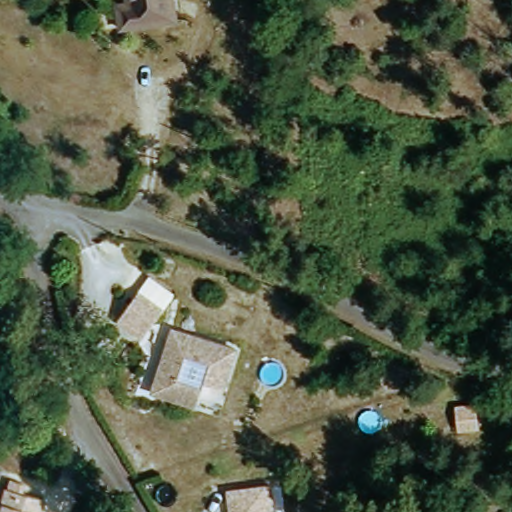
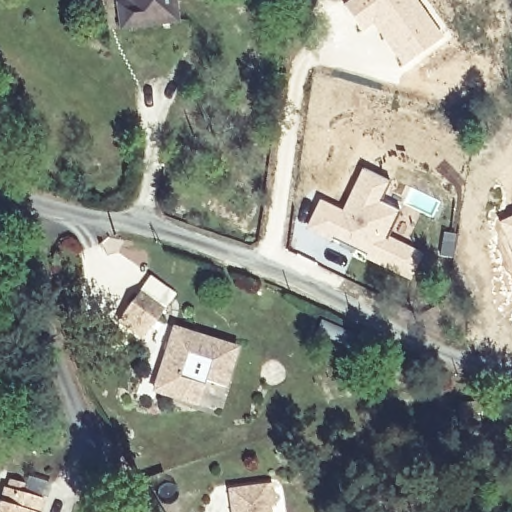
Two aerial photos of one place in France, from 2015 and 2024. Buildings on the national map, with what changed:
unchanged [(127,31),(124,6),(136,4),(136,0),(174,0),(177,25),(127,31)]
new [(419,0),(445,35),(403,67),(371,26),(362,32),(342,4),(348,0),(419,0)]
new [(318,198),(340,209),(361,167),(390,180),(381,201),(399,210),(387,234),(425,254),(410,282),(373,263),(345,247),(304,227),(318,198)]
new [(512,215),(512,254),(497,222),(512,215)]
unchanged [(137,292),(161,311),(140,338),(116,321),(137,292)]
unchanged [(150,392),(171,330),(232,350),(220,388),(201,382),(193,406),(150,392)]
unchanged [(487,432),(471,433),(468,407),(484,406),(487,432)]
unchanged [(5,483),(17,487),(15,496),(36,502),(34,512),(0,512),(0,492),(3,493),(5,483)]
unchanged [(231,510),(230,492),(271,488),(273,507),(268,508),(268,512),(234,512),(231,510)]

